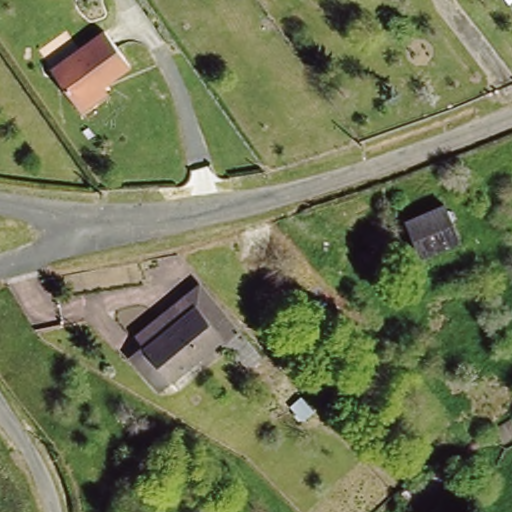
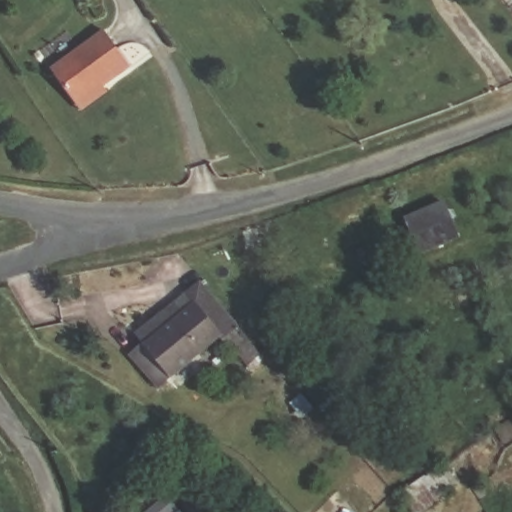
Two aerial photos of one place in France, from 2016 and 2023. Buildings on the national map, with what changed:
unchanged [(104,31),(125,61),(94,84),(100,93),(80,107),(51,69),(104,31)]
unchanged [(464,238),(423,256),(402,213),(449,194),(464,238)]
unchanged [(137,360),(150,348),(140,337),(189,292),(192,296),(205,284),(250,332),(265,347),(252,359),(237,343),(226,331),(177,377),(165,388),(137,360)]

